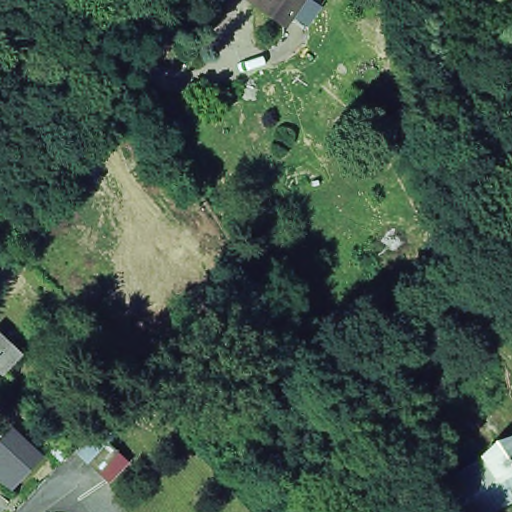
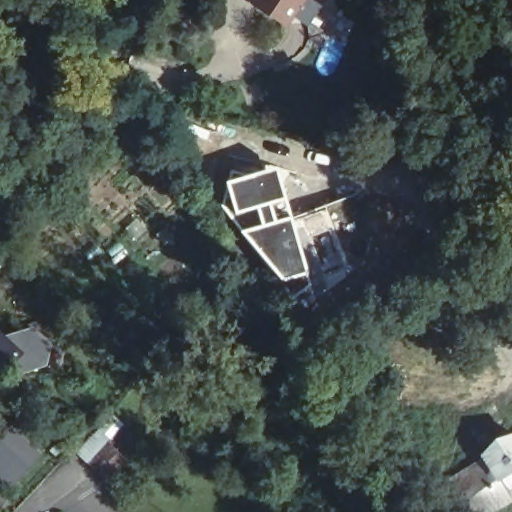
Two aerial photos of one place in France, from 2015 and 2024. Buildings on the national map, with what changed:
unchanged [(261,0),(308,0),(290,28),(261,0)]
new [(227,196),(224,181),(277,166),(292,217),(240,232),(230,217),(219,204),(227,196)]
new [(292,217),(308,275),(295,279),(284,283),(240,232),(292,217)]
unchanged [(128,298),(147,315),(126,336),(108,319),(128,298)]
unchanged [(2,366),(0,364),(0,328),(5,332),(22,348),(2,366)]
unchanged [(0,464),(0,455),(2,452),(25,430),(52,456),(30,479),(22,485),(0,464)]
unchanged [(421,496),(485,456),(484,454),(512,437),(512,501),(494,512),(431,512),(421,496)]
unchanged [(117,449),(96,472),(85,463),(106,440),(117,449)]

